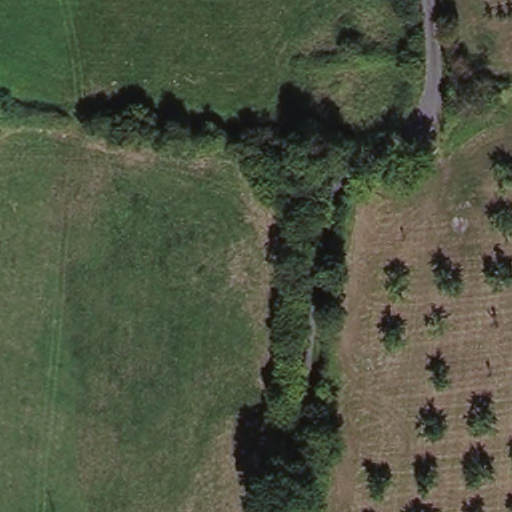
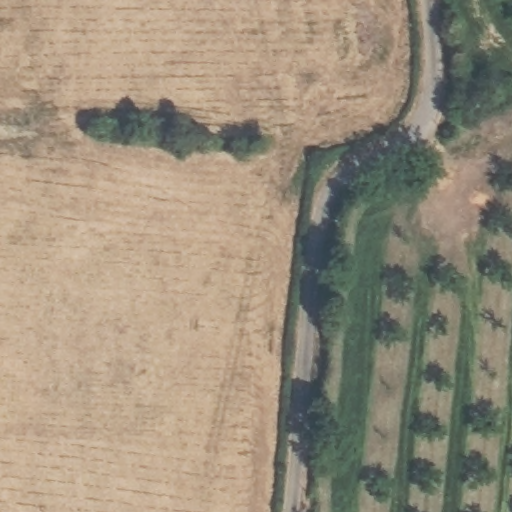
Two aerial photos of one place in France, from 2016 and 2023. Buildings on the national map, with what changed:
[]

